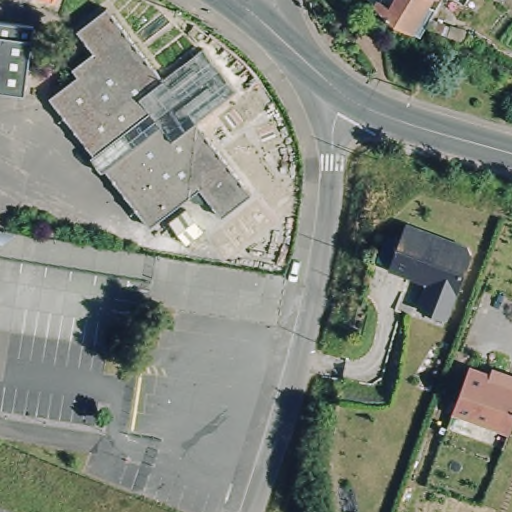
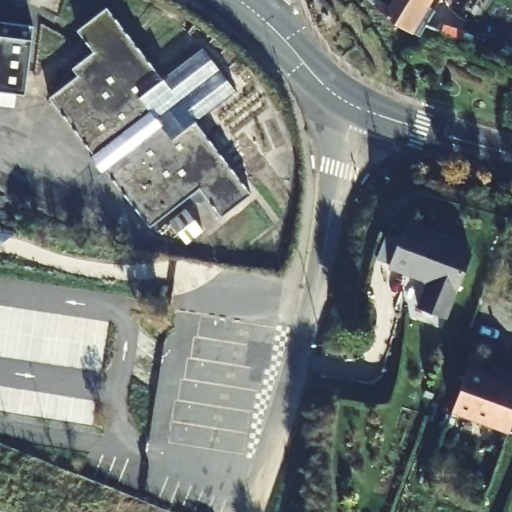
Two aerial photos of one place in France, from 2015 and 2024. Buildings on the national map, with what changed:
unchanged [(414,23),(422,27),(419,32),(414,39),(408,35),(407,34),(391,24),(386,21),(381,19),(381,17),(370,8),(364,0),(427,0),(414,23)]
unchanged [(157,77),(198,45),(232,90),(193,120),(248,191),(218,215),(198,190),(148,228),(103,172),(98,177),(85,161),(91,156),(46,97),(71,77),(64,69),(85,52),(73,32),(102,9),(157,77)]
unchanged [(25,97),(0,93),(0,23),(34,27),(25,97)]
unchanged [(404,227),(464,250),(469,260),(447,322),(418,312),(427,287),(388,272),(404,227)]
unchanged [(512,373),(512,428),(456,407),(473,360),(512,373)]

